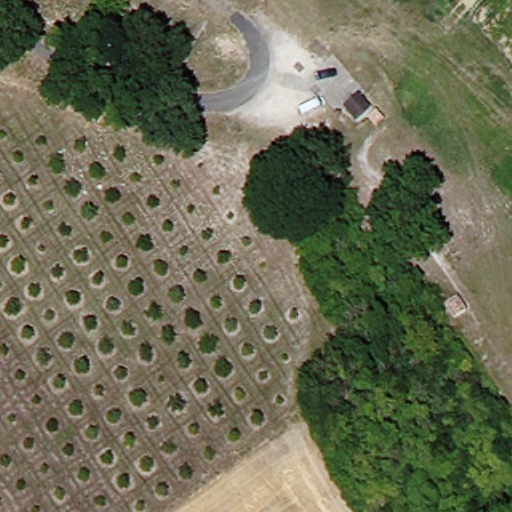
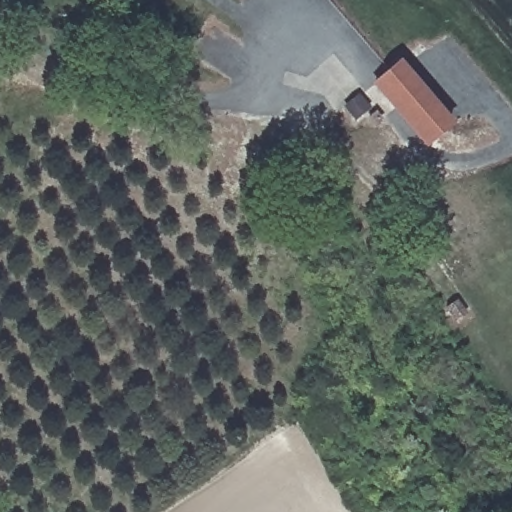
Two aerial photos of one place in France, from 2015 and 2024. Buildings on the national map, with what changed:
new [(455,123),(427,146),(372,84),(399,59),(455,123)]

